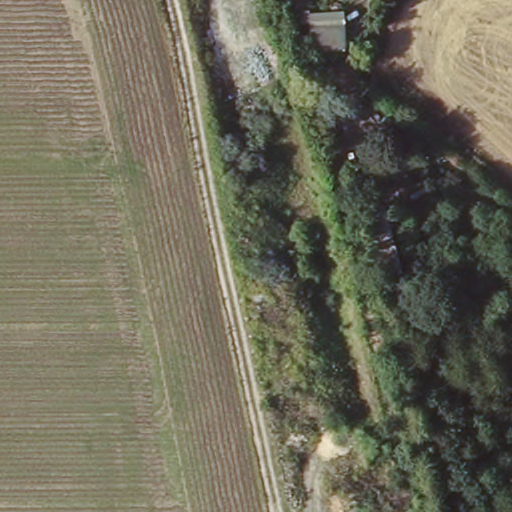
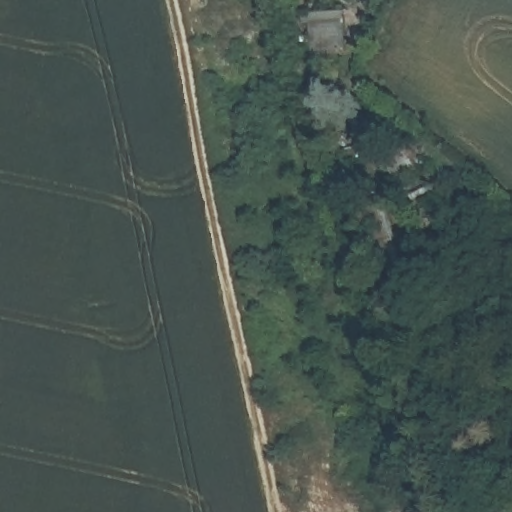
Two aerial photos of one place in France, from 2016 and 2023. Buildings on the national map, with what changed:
unchanged [(311,23),(300,24),(299,12),(300,11),(346,10),(347,52),(313,54),(311,23)]

